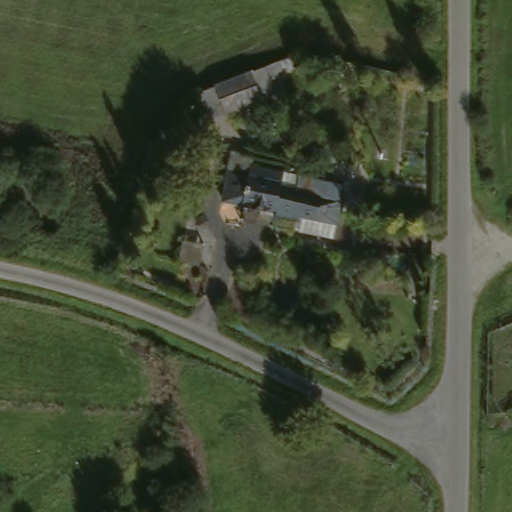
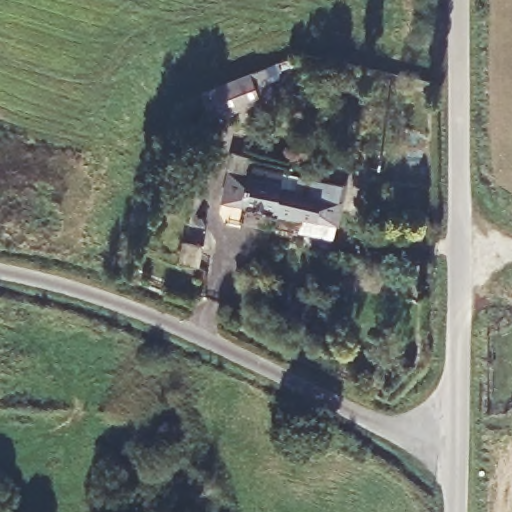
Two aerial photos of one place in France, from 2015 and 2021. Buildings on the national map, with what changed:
unchanged [(205,124),(195,99),(260,73),(270,99),(205,124)]
unchanged [(271,209),(269,222),(235,215),(238,200),(218,197),(225,165),(277,177),(277,182),(338,195),(332,220),(271,209)]

